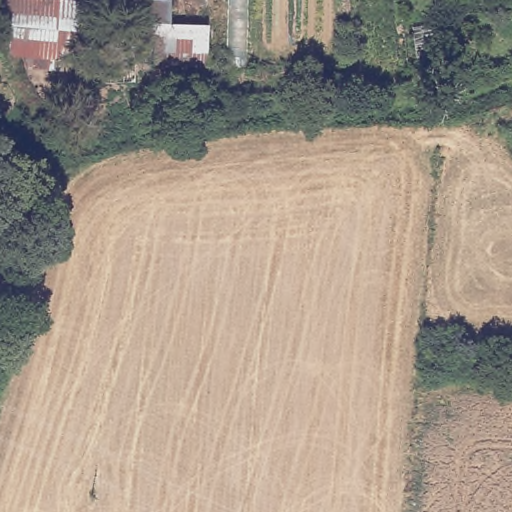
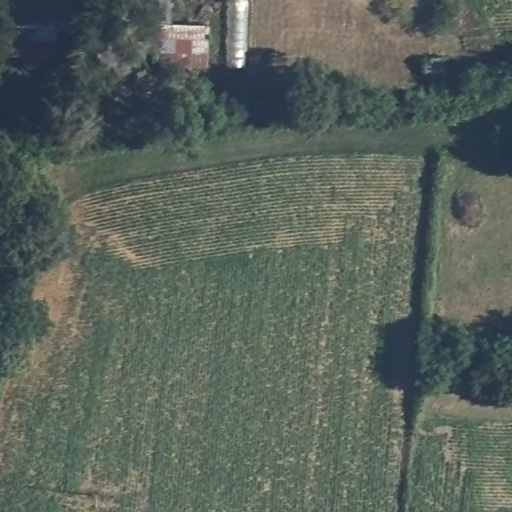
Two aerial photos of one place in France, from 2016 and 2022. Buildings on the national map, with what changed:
unchanged [(60,0),(77,1),(74,56),(0,48),(0,14),(2,0),(60,0)]
unchanged [(211,20),(209,59),(118,51),(122,0),(173,0),(173,18),(211,20)]

